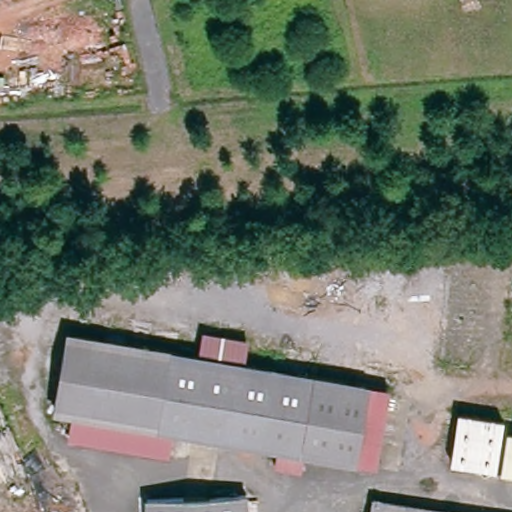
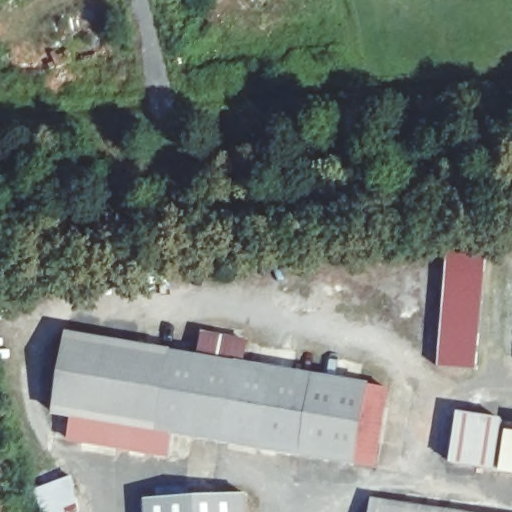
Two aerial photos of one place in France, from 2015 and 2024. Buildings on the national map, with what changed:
new [(445,278),(450,249),(489,252),(475,371),(437,366),(445,278)]
unchanged [(274,467),(277,453),(171,435),(72,418),(52,415),(66,336),(272,370),(276,348),(296,352),(292,374),(365,386),(364,393),(352,465),(302,457),(300,472),(274,467)]
unchanged [(371,468),(352,465),(364,393),(383,396),(371,468)]
unchanged [(497,471),(452,464),(460,414),(504,421),(497,471)]
unchanged [(171,435),(167,457),(69,441),(72,418),(171,435)]
unchanged [(512,425),(512,474),(502,472),(510,425),(512,425)]
unchanged [(238,512),(137,512),(137,508),(237,503),(238,512)]
unchanged [(421,512),(368,512),(370,504),(421,512)]

